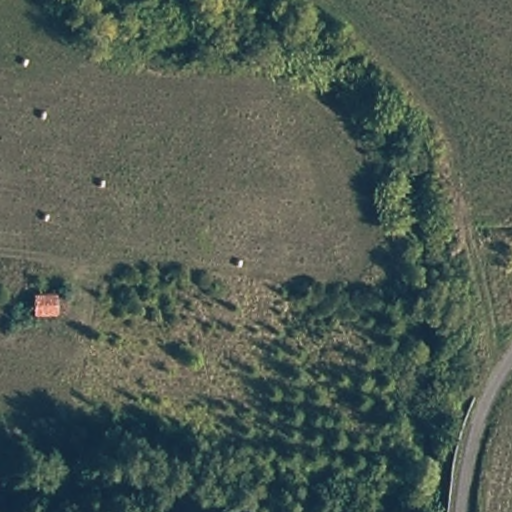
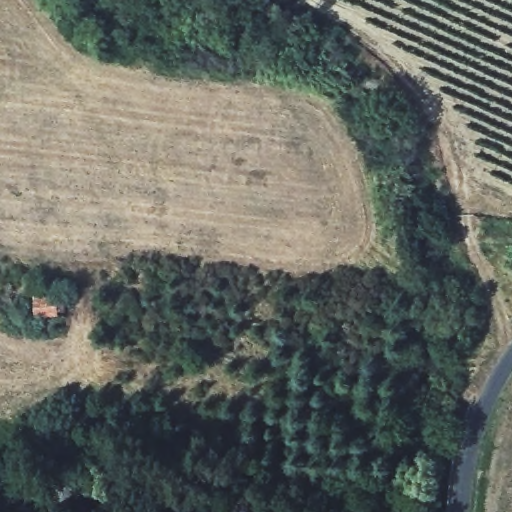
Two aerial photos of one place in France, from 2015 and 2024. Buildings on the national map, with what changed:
unchanged [(27,287),(65,289),(65,312),(29,312),(27,287)]

